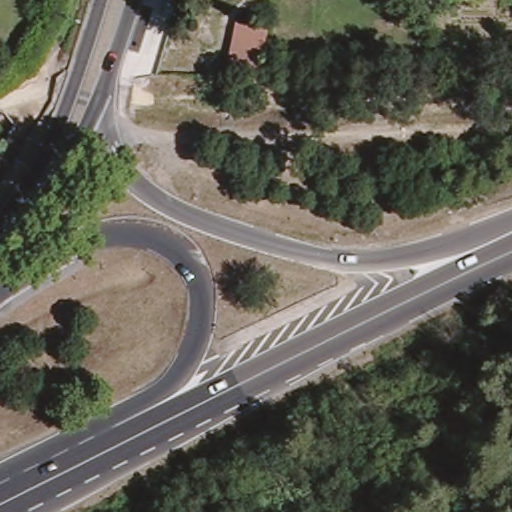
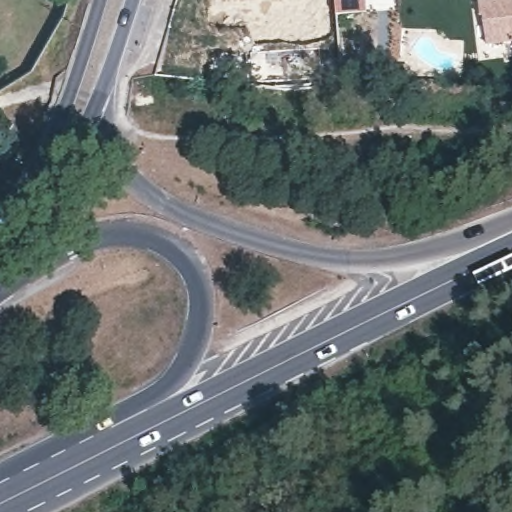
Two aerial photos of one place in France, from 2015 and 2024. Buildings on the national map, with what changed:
new [(365,13),(337,14),(335,0),(366,0),(365,13)]
new [(487,46),(480,0),(512,0),(512,43),(487,46)]
unchanged [(231,22),(265,25),(262,58),(229,54),(231,22)]

